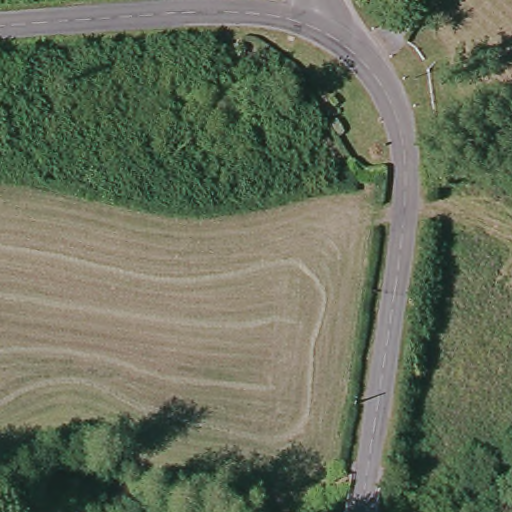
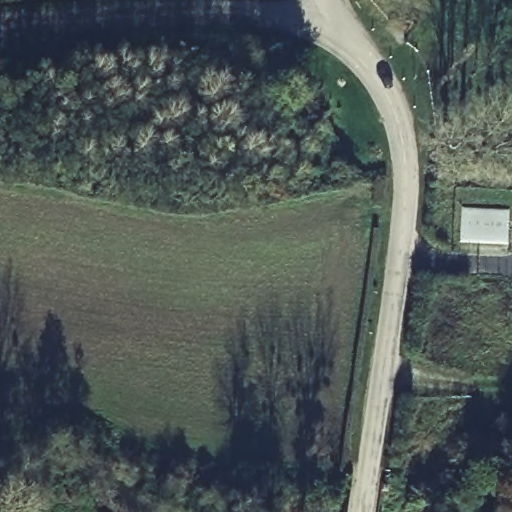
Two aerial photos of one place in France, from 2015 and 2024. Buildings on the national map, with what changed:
new [(503,205),(502,241),(453,240),(455,204),(503,205)]

